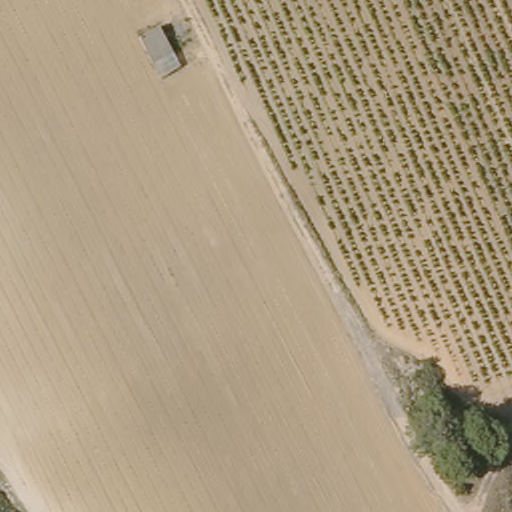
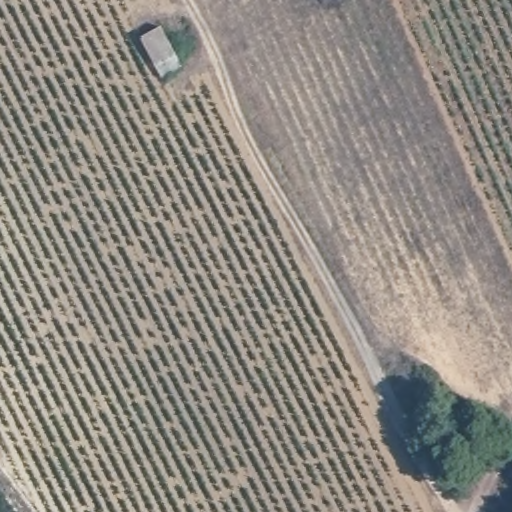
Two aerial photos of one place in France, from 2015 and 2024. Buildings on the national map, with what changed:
unchanged [(189,63),(158,75),(141,33),(172,20),(189,63)]

